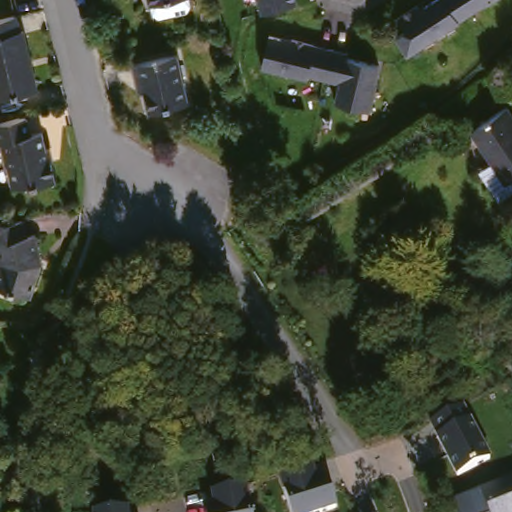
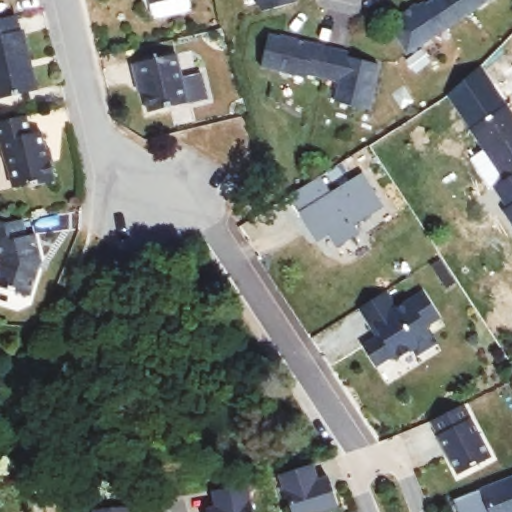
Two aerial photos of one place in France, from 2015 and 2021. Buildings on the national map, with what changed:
unchanged [(161,11),(155,8),(153,0),(191,0),(188,5),(161,11)]
unchanged [(258,14),(255,0),(293,0),(293,4),(258,14)]
unchanged [(458,22),(406,56),(394,38),(405,31),(397,18),(416,6),(419,10),(435,0),(490,0),(457,21),(458,22)]
unchanged [(23,33),(38,93),(0,102),(0,22),(14,19),(18,34),(23,33)]
unchanged [(352,54),(351,58),(383,66),(376,90),(378,91),(374,112),(341,104),(345,85),(311,77),(310,80),(263,69),(271,38),(295,43),(296,40),(352,54)]
unchanged [(191,102),(154,112),(145,80),(141,81),(137,65),(179,54),(191,102)]
new [(502,211),(509,207),(495,189),(505,182),(448,96),(481,66),(512,112),(512,225),(502,211)]
demolished [(503,111),(512,125),(512,179),(502,185),(468,134),(503,111)]
unchanged [(49,153),(52,152),(55,164),(53,165),(58,185),(32,191),(31,187),(12,192),(6,168),(4,169),(0,149),(0,125),(14,122),(27,119),(33,138),(44,134),(49,153)]
new [(299,213),(300,212),(290,197),(322,178),(331,193),(362,175),(383,209),(354,225),(359,235),(336,249),(328,235),(316,243),(299,213)]
unchanged [(27,244),(32,243),(38,267),(36,274),(26,304),(0,296),(0,230),(3,232),(20,228),(23,240),(25,245),(27,244)]
new [(362,346),(375,338),(359,310),(388,292),(398,307),(409,299),(423,292),(440,321),(426,329),(432,339),(434,337),(438,344),(416,357),(412,349),(395,362),(393,358),(376,369),(362,346)]
unchanged [(431,421),(462,406),(469,419),(471,418),(491,458),(458,473),(457,474),(431,421)]
unchanged [(280,479),(312,470),(316,482),(330,479),(338,511),(335,512),(291,512),(280,479)]
unchanged [(453,501),(479,488),(512,475),(512,512),(458,512),(453,501)]
unchanged [(204,508),(213,506),(210,492),(247,486),(252,512),(205,512),(204,508)]
unchanged [(93,507),(131,503),(132,512),(94,512),(93,507)]

